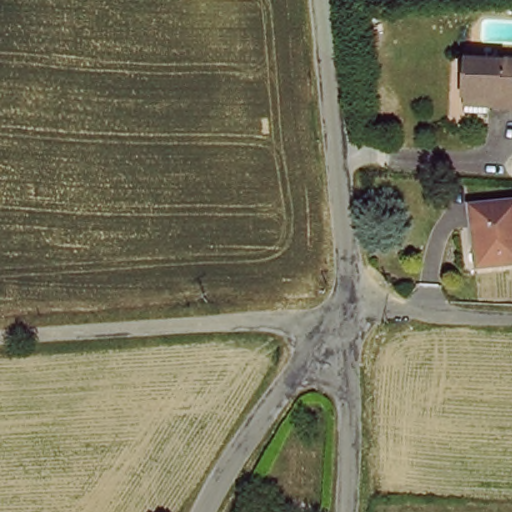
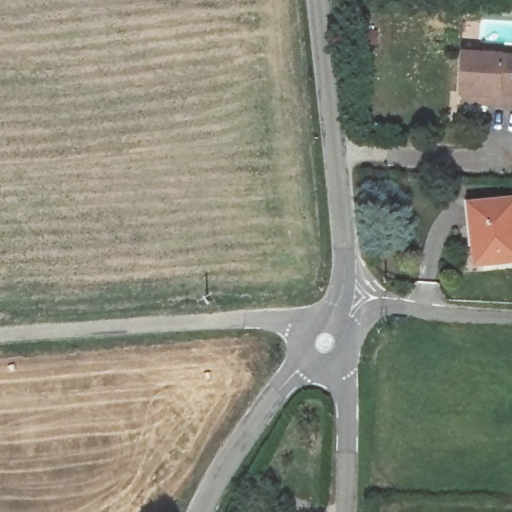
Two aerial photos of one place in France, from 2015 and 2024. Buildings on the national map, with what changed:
unchanged [(512,55),(512,107),(497,108),(496,95),(464,98),(464,56),(512,55)]
unchanged [(480,210),(482,195),(512,193),(512,268),(471,269),(471,211),(480,210)]

